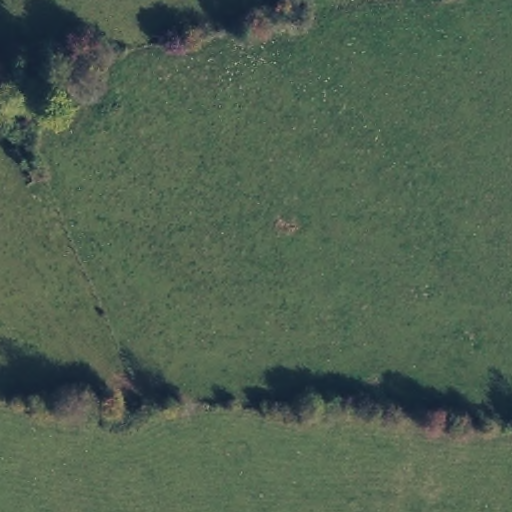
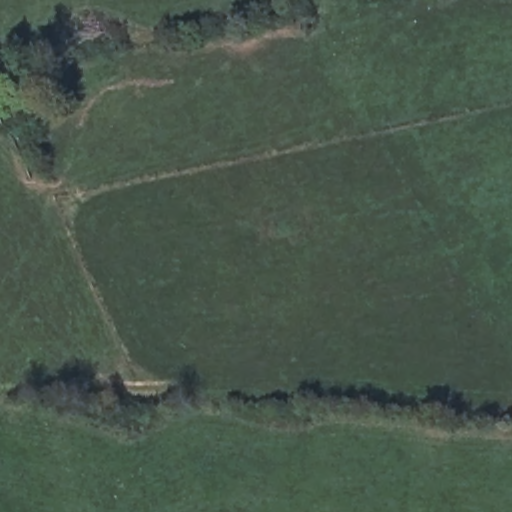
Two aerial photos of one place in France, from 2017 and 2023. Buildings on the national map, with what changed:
unchanged [(42,75),(47,101),(26,106),(21,79),(42,75)]

